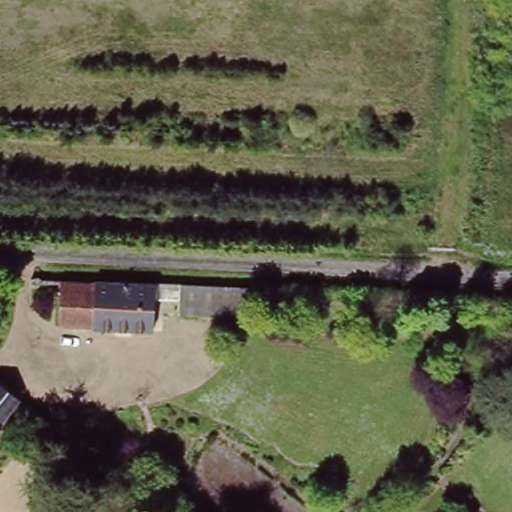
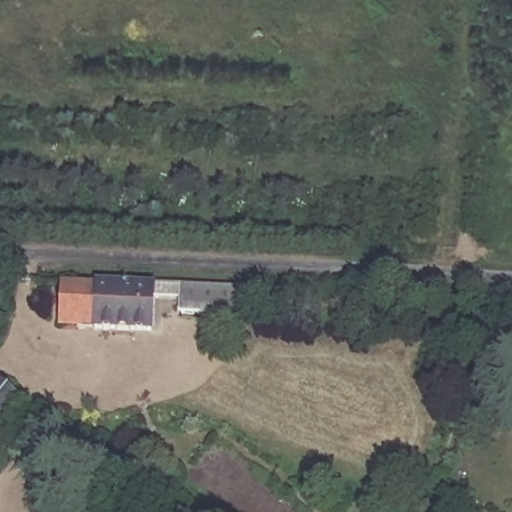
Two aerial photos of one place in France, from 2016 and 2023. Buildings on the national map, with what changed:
unchanged [(94,278),(93,326),(60,326),(61,277),(94,278)]
unchanged [(94,278),(259,285),(261,285),(261,299),(240,299),(238,314),(172,311),(171,329),(156,329),(156,333),(93,330),(93,326),(94,278)]
unchanged [(15,395),(26,404),(20,412),(18,416),(7,406),(0,415),(0,383),(15,395)]

